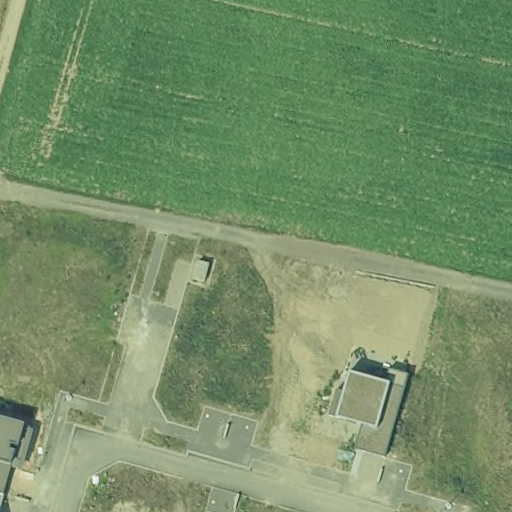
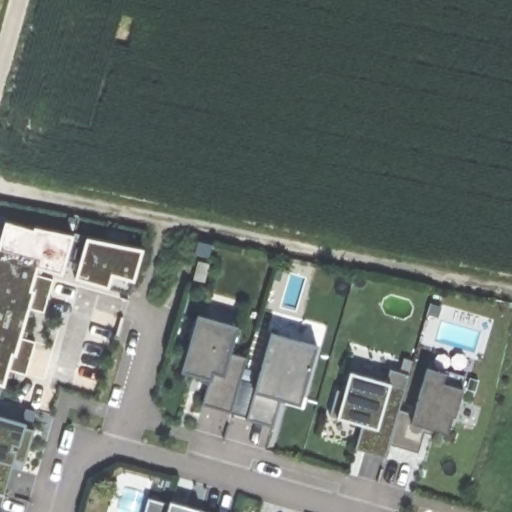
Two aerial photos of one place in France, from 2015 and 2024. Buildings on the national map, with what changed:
new [(108,288),(75,278),(77,269),(66,265),(63,276),(38,268),(36,273),(54,278),(44,313),(30,305),(21,336),(37,342),(27,374),(9,366),(4,387),(0,386),(0,224),(1,223),(5,221),(34,229),(34,226),(75,235),(73,239),(86,242),(87,238),(145,249),(134,282),(132,281),(129,293),(108,288)]
new [(198,261),(209,264),(204,282),(193,279),(198,261)]
new [(210,378),(182,370),(198,317),(238,327),(231,353),(247,358),(230,410),(204,402),(210,378)]
new [(300,404),(280,399),(272,424),(250,417),(258,391),(273,334),(316,347),(300,404)]
unchanged [(387,381),(391,369),(409,374),(385,458),(356,449),(364,424),(340,417),(330,414),(336,389),(345,391),(353,371),(387,381)]
new [(399,408),(415,413),(428,369),(448,375),(444,384),(463,390),(454,416),(451,417),(447,432),(426,427),(418,451),(389,443),(399,408)]
unchanged [(27,423),(26,428),(35,430),(24,469),(13,466),(1,508),(4,509),(3,512),(0,512),(0,415),(27,423)]
unchanged [(169,505),(168,504),(169,502),(200,510),(205,512),(143,512),(147,499),(169,505)]

